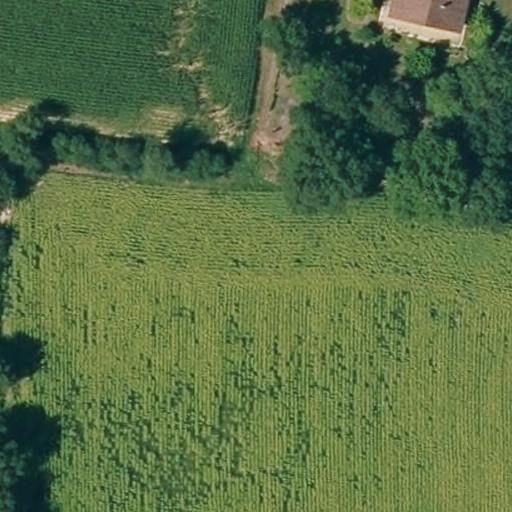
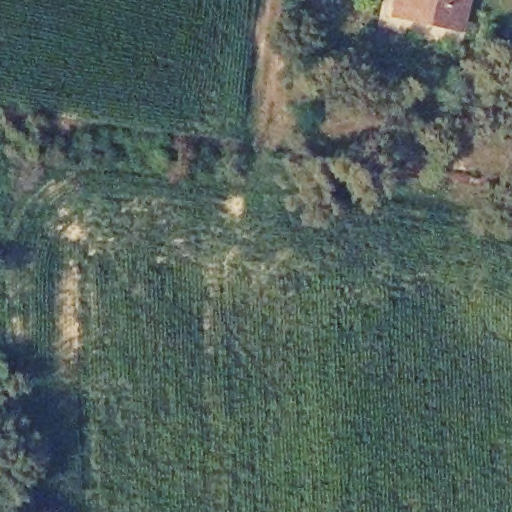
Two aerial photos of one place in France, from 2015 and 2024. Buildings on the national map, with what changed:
unchanged [(463,28),(397,15),(400,0),(469,0),(463,28)]

